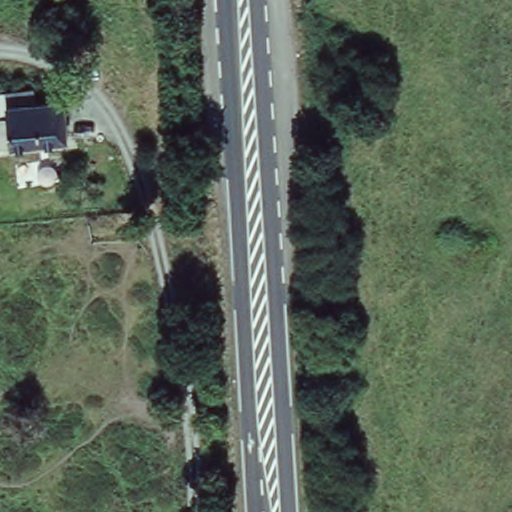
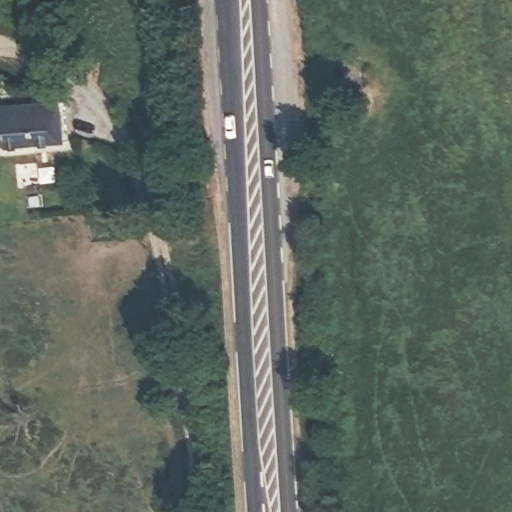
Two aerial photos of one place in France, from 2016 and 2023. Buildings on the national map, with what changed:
unchanged [(13,108),(11,91),(41,90),(42,105),(68,102),(75,139),(18,149),(17,145),(0,148),(0,121),(14,119),(13,108)]

